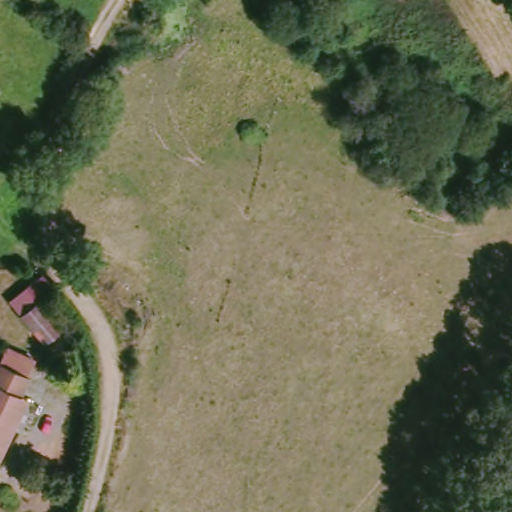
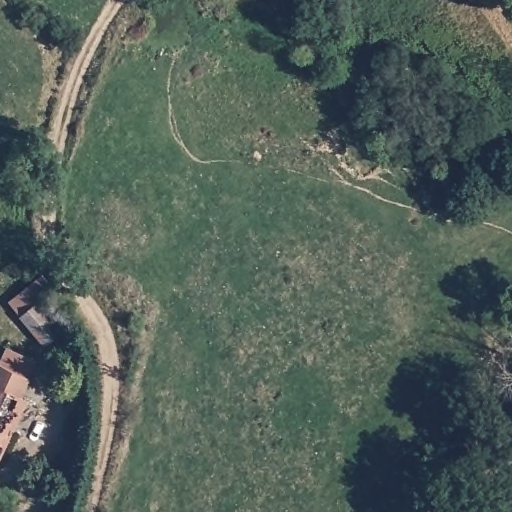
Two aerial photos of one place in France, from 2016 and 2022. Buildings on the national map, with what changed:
unchanged [(30,279),(42,286),(35,304),(68,317),(60,338),(8,317),(24,279),(30,279)]
unchanged [(8,350),(33,362),(26,377),(30,378),(21,396),(28,399),(2,456),(0,455),(0,364),(1,365),(8,350)]

